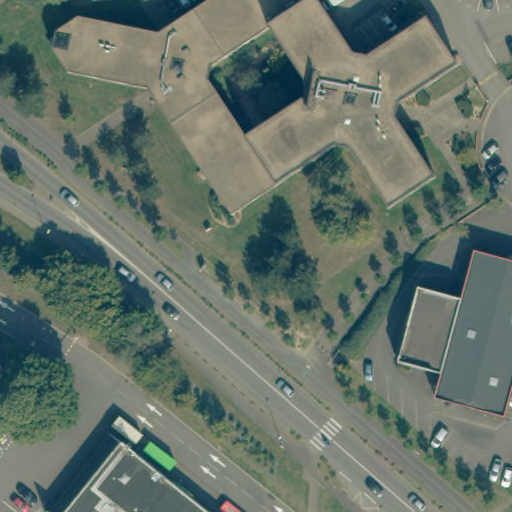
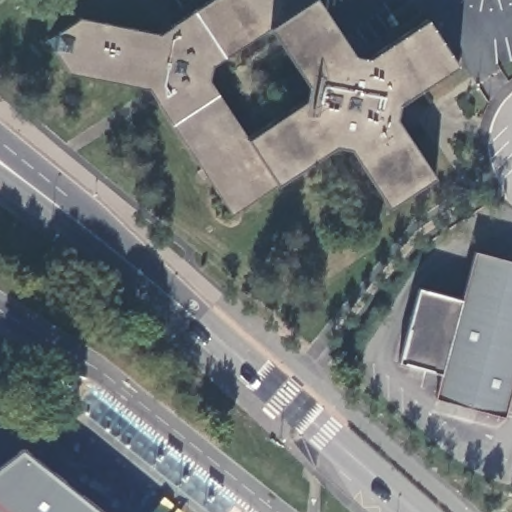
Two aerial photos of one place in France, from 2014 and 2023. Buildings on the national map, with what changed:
unchanged [(353,54),(368,58),(428,23),(457,67),(399,105),(396,119),(435,179),(391,208),(352,151),(338,146),(232,215),(148,90),(74,75),(57,49),(56,36),(82,20),(165,36),(220,0),(318,0),(353,54)]
unchanged [(506,417),(436,399),(442,375),(401,362),(419,288),(462,300),(476,253),(512,264),(512,395),(506,417)]
demolished [(66,512),(122,443),(210,512),(66,512)]
new [(93,512),(0,512),(0,474),(24,457),(93,512)]

